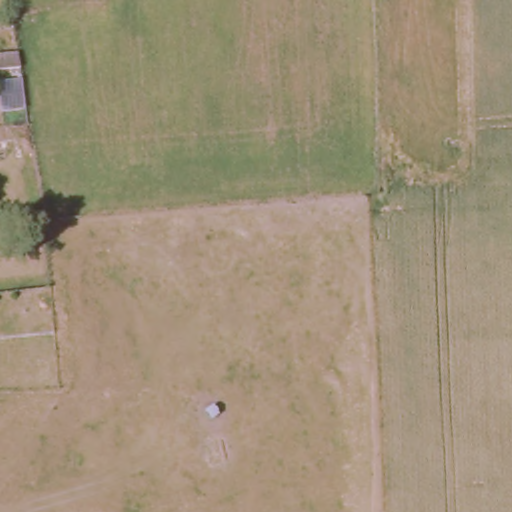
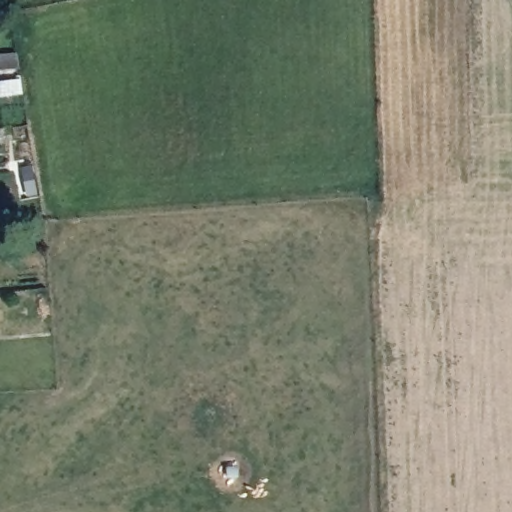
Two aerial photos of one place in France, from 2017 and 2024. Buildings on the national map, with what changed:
unchanged [(0,52),(12,51),(14,67),(0,69),(0,52)]

